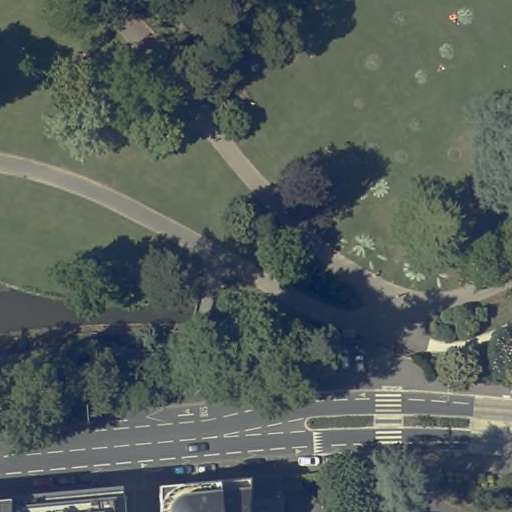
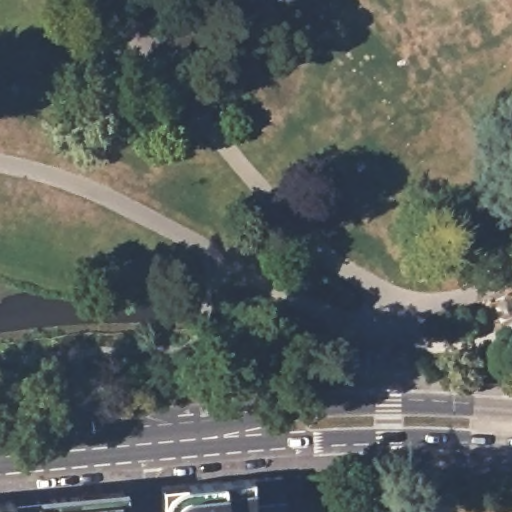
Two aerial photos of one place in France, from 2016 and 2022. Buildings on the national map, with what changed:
unchanged [(165,50),(171,39),(186,37),(193,47),(187,60),(172,61),(165,50)]
unchanged [(281,476),(284,512),(255,512),(252,478),(281,476)]
unchanged [(188,485),(252,478),(255,512),(162,512),(161,487),(188,485)]
unchanged [(412,502),(405,503),(399,491),(405,490),(412,502)]
unchanged [(120,491),(121,495),(121,497),(123,496),(125,496),(125,498),(125,512),(11,512),(11,501),(116,491),(120,491)]
unchanged [(11,501),(11,512),(0,512),(0,502),(11,501)]

